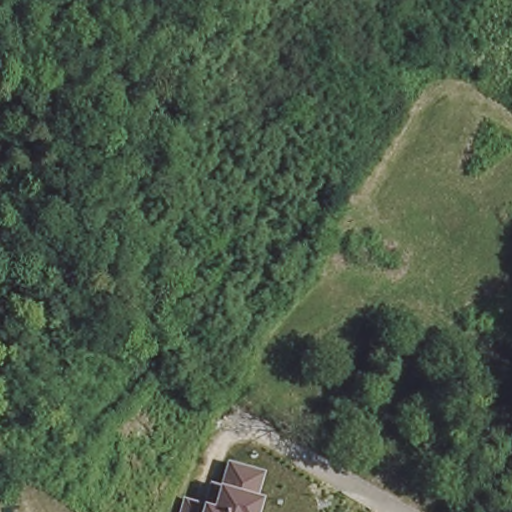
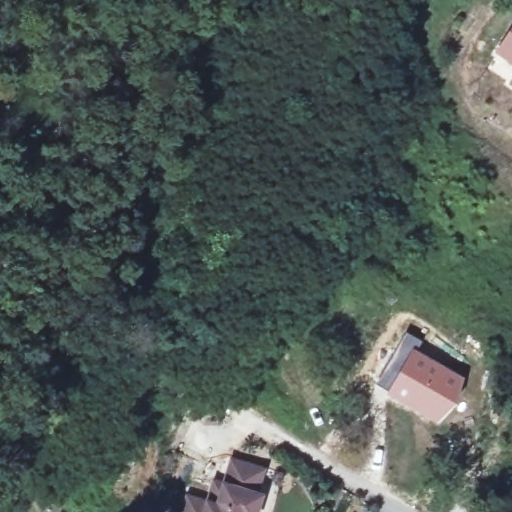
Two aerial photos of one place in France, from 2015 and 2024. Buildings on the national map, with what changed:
new [(512,28),(512,65),(497,55),(512,28)]
new [(512,79),(512,91),(507,87),(512,79)]
new [(453,403),(439,425),(387,393),(375,385),(407,332),(423,341),(417,350),(465,378),(453,403)]
unchanged [(261,493),(267,495),(263,512),(180,512),(185,495),(205,500),(211,481),(224,484),(231,460),(266,469),(261,493)]

